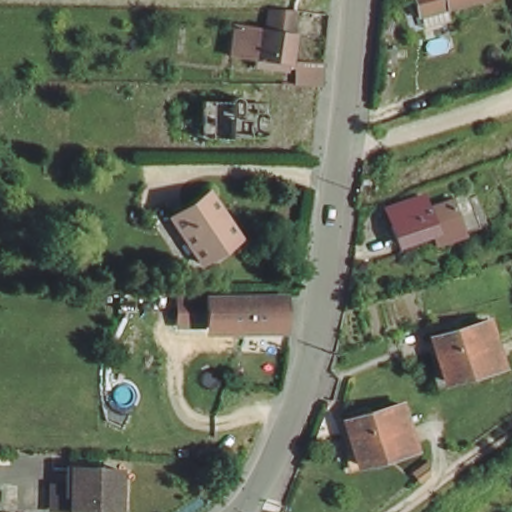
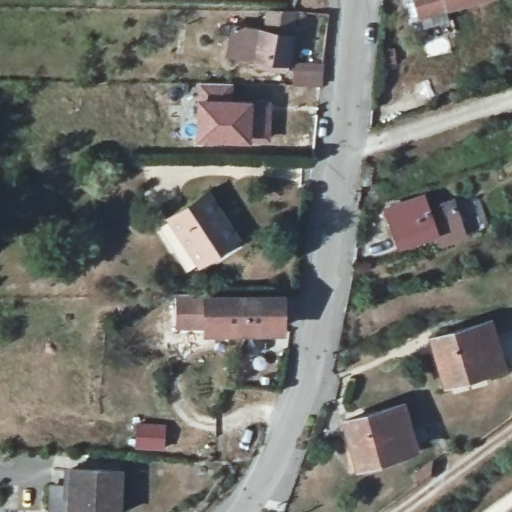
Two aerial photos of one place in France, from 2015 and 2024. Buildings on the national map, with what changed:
unchanged [(418,20),(413,0),(492,0),(418,20)]
unchanged [(230,57),(233,26),(256,27),(287,30),(282,61),(253,58),(230,57)]
unchanged [(299,77),(300,62),(320,67),(319,79),(299,77)]
new [(262,102),(262,105),(276,105),(275,144),(260,144),(260,148),(206,148),(205,102),(262,102)]
unchanged [(237,242),(204,264),(170,217),(205,192),(237,242)]
unchanged [(383,209),(429,192),(435,205),(457,196),(460,202),(389,226),(383,209)]
unchanged [(444,246),(442,237),(439,232),(394,247),(389,226),(460,202),(470,228),(473,236),(444,246)]
unchanged [(205,292),(206,297),(206,327),(176,326),(179,292),(205,292)]
unchanged [(206,297),(250,297),(257,297),(284,297),(282,324),(249,325),(207,325),(206,297)]
unchanged [(444,378),(433,336),(485,321),(497,364),(444,378)]
unchanged [(341,423),(399,407),(405,425),(411,450),(354,465),(345,432),(341,423)]
unchanged [(122,512),(72,512),(75,467),(125,467),(122,512)]

